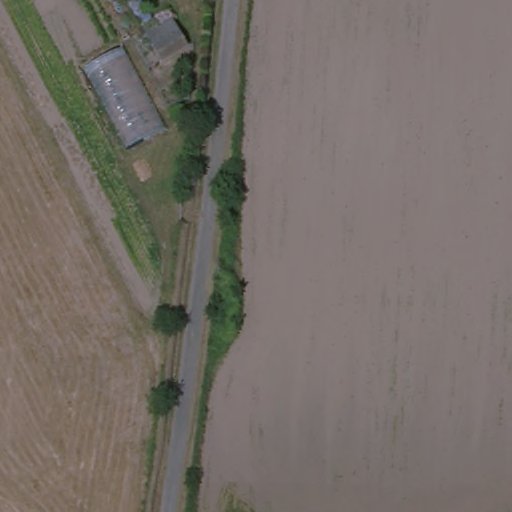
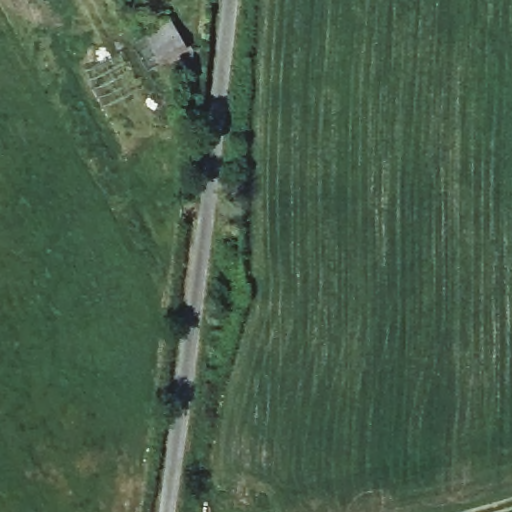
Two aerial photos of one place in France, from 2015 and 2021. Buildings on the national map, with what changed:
unchanged [(156,66),(139,35),(165,18),(183,51),(156,66)]
demolished [(119,39),(166,130),(128,150),(83,63),(119,39)]

